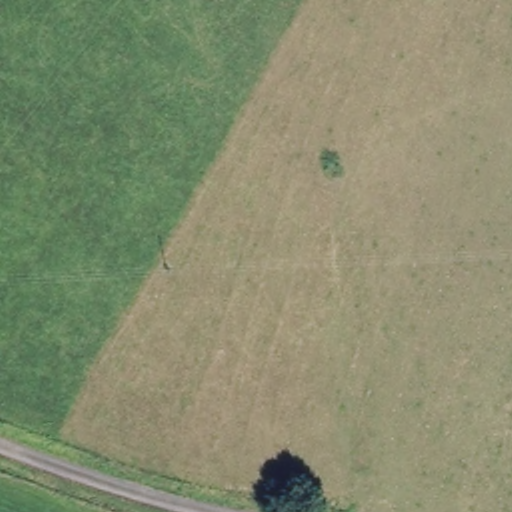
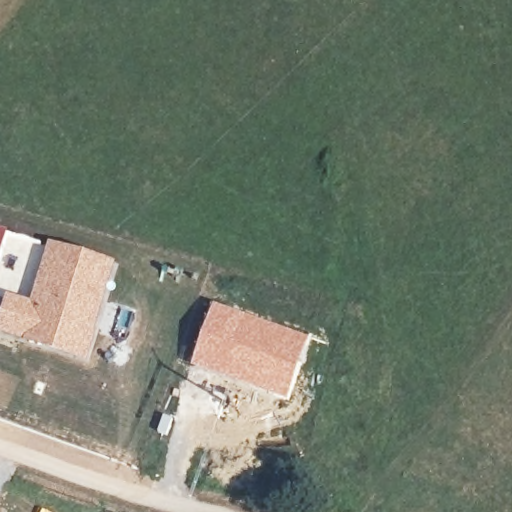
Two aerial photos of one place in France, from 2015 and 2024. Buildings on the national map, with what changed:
new [(0,229),(9,231),(0,261),(0,229)]
new [(30,301),(49,241),(117,261),(89,362),(50,351),(0,334),(0,316),(7,294),(30,301)]
new [(214,303),(310,336),(288,401),(192,365),(214,303)]

